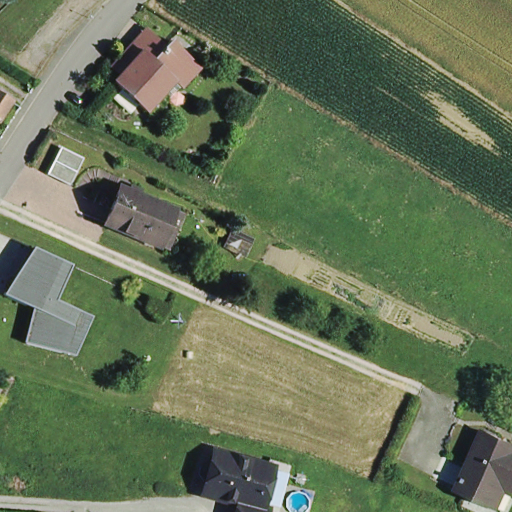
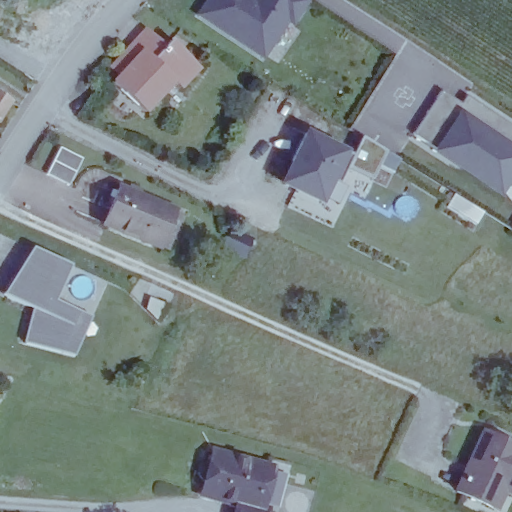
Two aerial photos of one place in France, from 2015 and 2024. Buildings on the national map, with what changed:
new [(312,2),(296,29),(288,25),(267,61),(196,17),(206,0),(309,0),(312,2)]
unchanged [(142,110),(142,111),(110,81),(116,74),(107,66),(143,28),(162,45),(167,39),(196,65),(177,85),(148,116),(142,110)]
new [(512,123),(512,167),(496,196),(412,143),(441,92),(463,107),(468,97),(512,123)]
unchanged [(0,117),(0,93),(11,100),(0,117)]
new [(296,162),(293,160),(306,133),(353,155),(340,183),(333,179),(323,200),(287,182),(296,162)]
unchanged [(62,147),(83,158),(70,185),(47,173),(62,147)]
unchanged [(160,248),(150,244),(100,224),(115,186),(126,191),(125,192),(132,195),(132,193),(165,207),(175,211),(160,248)]
unchanged [(75,357),(23,341),(32,308),(1,296),(32,245),(75,265),(60,300),(92,315),(75,357)]
unchanged [(165,324),(142,311),(150,295),(175,309),(165,324)]
unchanged [(455,491),(482,431),(512,445),(512,493),(500,487),(492,507),(455,491)]
unchanged [(275,504),(273,512),(240,512),(243,498),(207,489),(211,477),(205,468),(207,460),(217,456),(219,446),(238,451),(273,460),(263,501),(275,504)]

